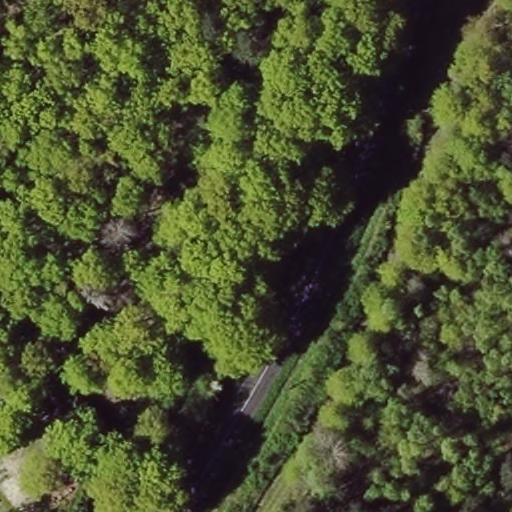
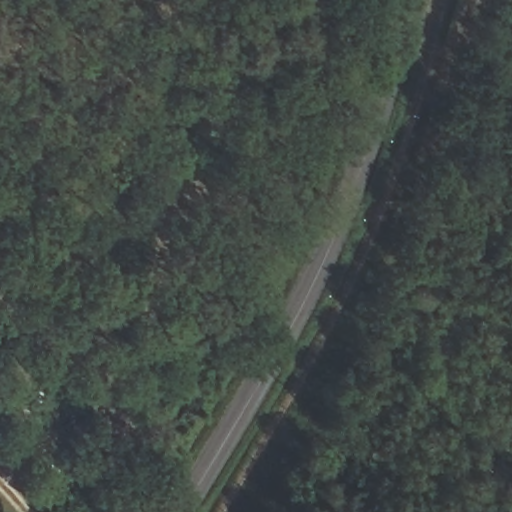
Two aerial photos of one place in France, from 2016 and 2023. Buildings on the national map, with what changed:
unchanged [(0,449),(0,398),(23,426),(0,449)]

